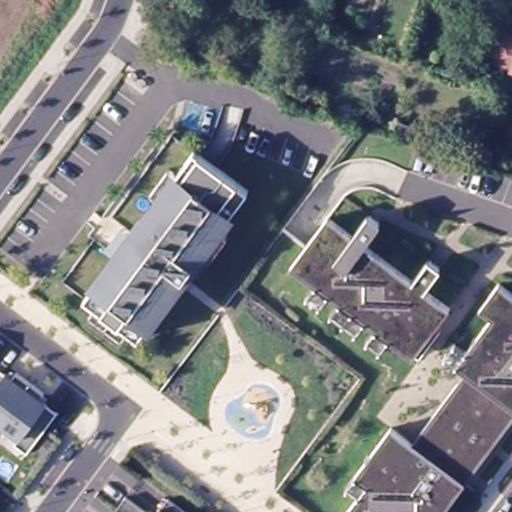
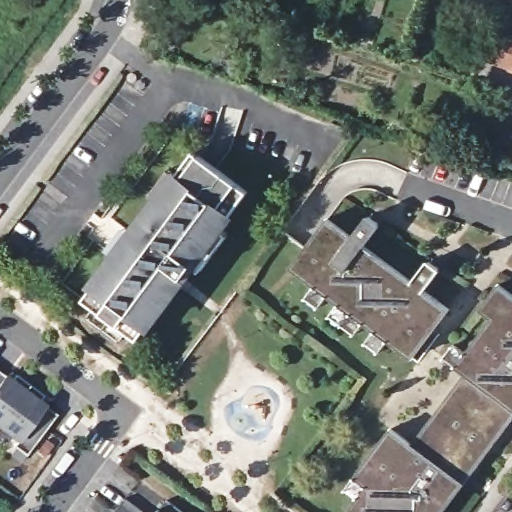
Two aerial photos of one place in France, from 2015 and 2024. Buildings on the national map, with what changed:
unchanged [(504,27),(512,30),(512,66),(492,58),(504,27)]
unchanged [(393,132),(398,121),(417,129),(413,139),(393,132)]
unchanged [(139,343),(129,334),(123,343),(91,319),(97,310),(86,302),(113,266),(103,259),(112,247),(119,238),(128,245),(161,202),(153,196),(173,171),(181,177),(198,154),(252,195),(224,232),(232,238),(204,274),(196,269),(139,343)]
unchanged [(369,342),(378,330),(367,322),(358,334),(331,315),(340,303),(328,294),(319,306),(306,297),(315,284),(292,268),(330,217),(355,235),(370,214),(382,224),(367,244),(415,279),(430,258),(443,267),(427,289),(452,307),(415,357),(391,340),(382,352),(369,342)]
unchanged [(357,503),(344,493),(354,480),(389,431),(411,447),(463,376),(454,369),(442,361),(451,348),(464,356),(489,322),(477,313),(497,284),(512,295),(512,424),(448,512),(350,512),(357,503)]
unchanged [(0,425),(0,372),(10,379),(14,374),(29,384),(0,425)]
unchanged [(43,394),(38,401),(56,414),(25,454),(5,439),(9,433),(0,426),(0,425),(29,384),(43,394)]
unchanged [(129,499),(146,512),(119,512),(129,499)]
unchanged [(172,502),(186,512),(165,512),(172,502)]
unchanged [(163,511),(165,512),(163,512),(163,511)]

